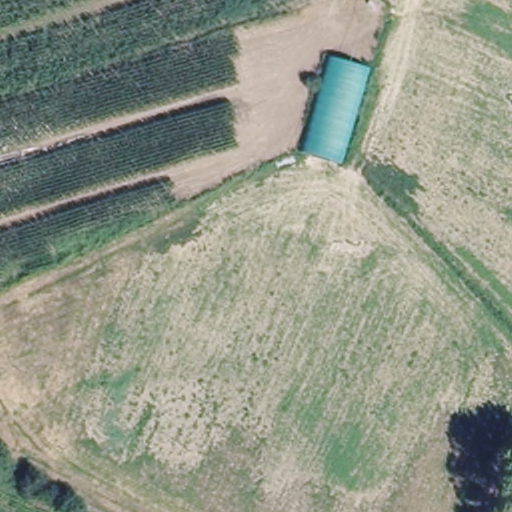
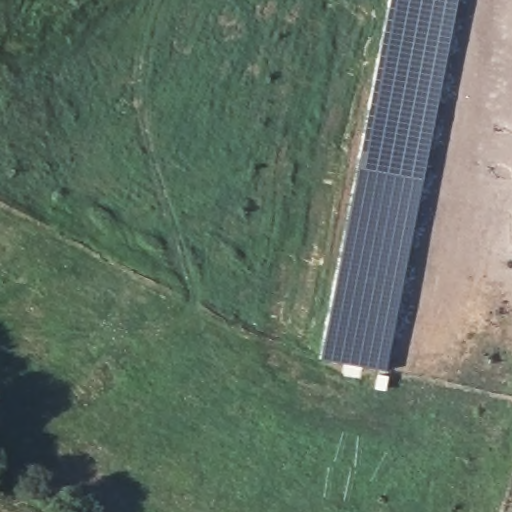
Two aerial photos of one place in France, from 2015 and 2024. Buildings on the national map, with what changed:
new [(387,370),(323,358),(392,0),(458,0),(387,370)]
demolished [(329,53),(372,64),(344,162),(303,150),(329,53)]

